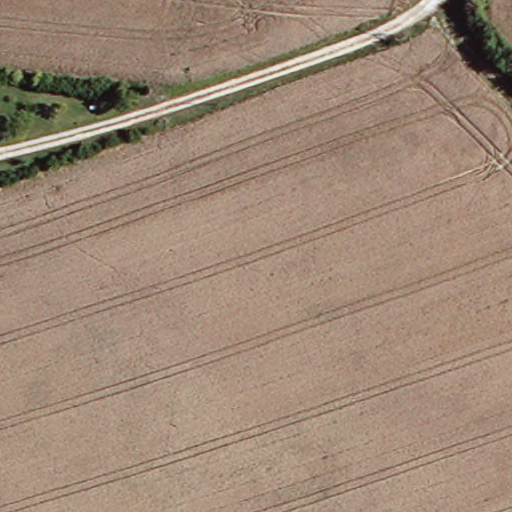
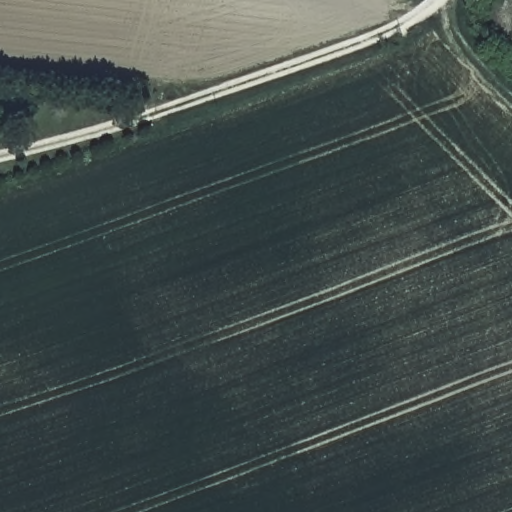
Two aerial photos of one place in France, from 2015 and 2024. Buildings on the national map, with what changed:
[]

